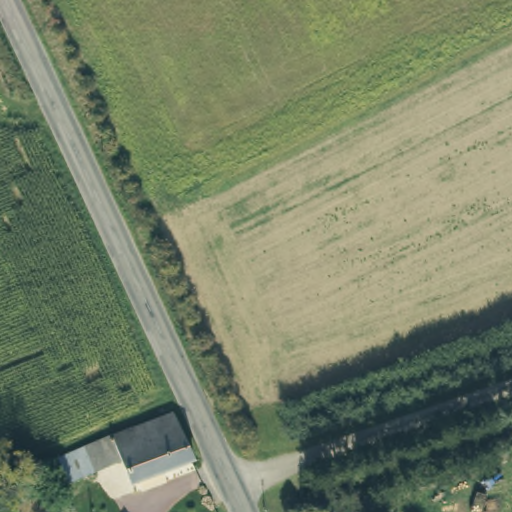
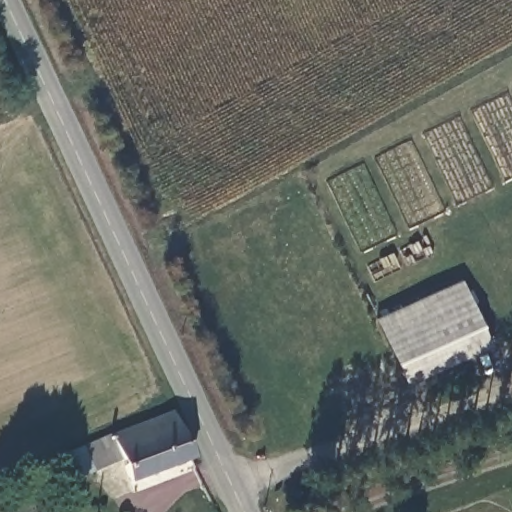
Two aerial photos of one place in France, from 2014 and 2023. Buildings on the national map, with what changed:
new [(405,385),(377,318),(462,279),(492,344),(405,385)]
unchanged [(189,453),(129,480),(119,457),(92,469),(82,446),(169,407),(189,453)]

